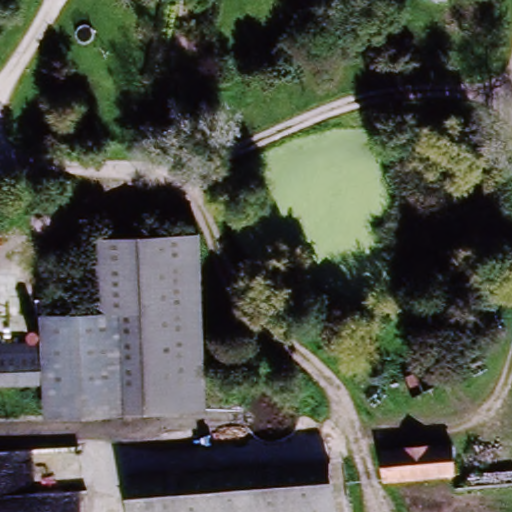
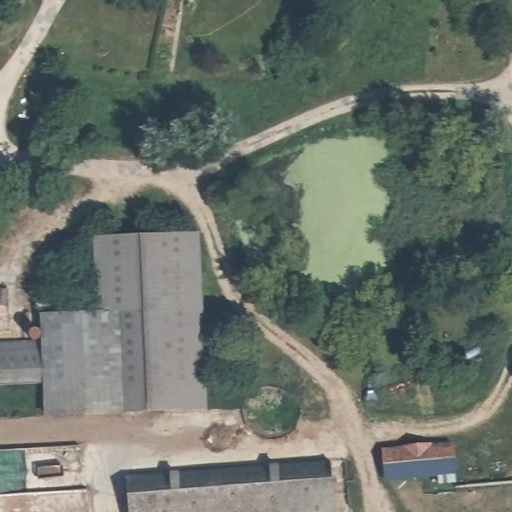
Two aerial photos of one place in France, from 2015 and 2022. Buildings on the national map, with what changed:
unchanged [(93,246),(195,240),(205,414),(122,419),(117,323),(98,324),(93,246)]
unchanged [(44,356),(42,327),(98,324),(117,323),(122,419),(48,424),(46,389),(44,356)]
unchanged [(0,391),(0,359),(44,356),(46,389),(0,391)]
unchanged [(454,449),(456,477),(388,482),(387,454),(454,449)]
unchanged [(336,464),(339,512),(129,512),(127,479),(336,464)]

